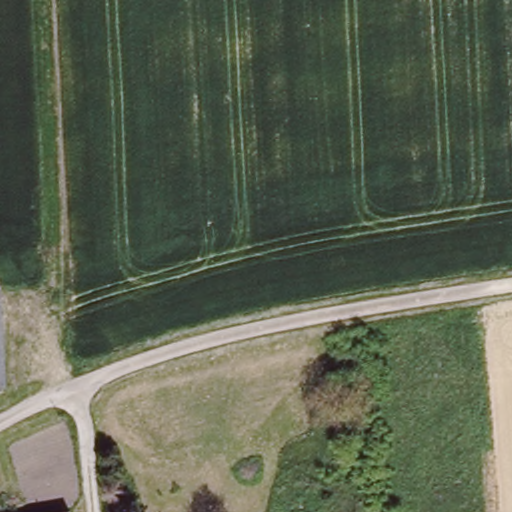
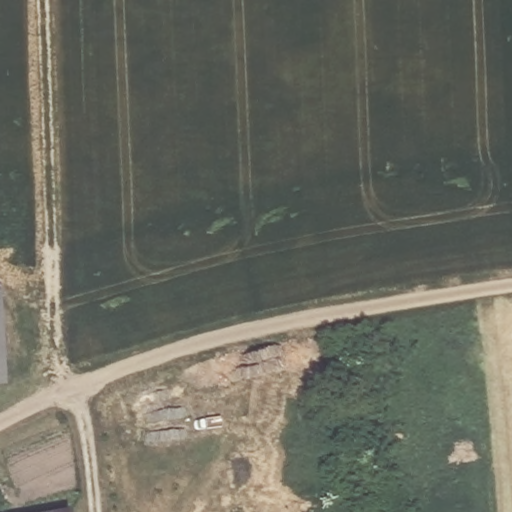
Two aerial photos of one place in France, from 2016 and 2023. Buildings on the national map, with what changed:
unchanged [(7,350),(0,351),(0,296),(6,296),(7,350)]
unchanged [(7,350),(7,386),(0,386),(0,351),(7,350)]
unchanged [(71,506),(72,512),(45,512),(71,506)]

